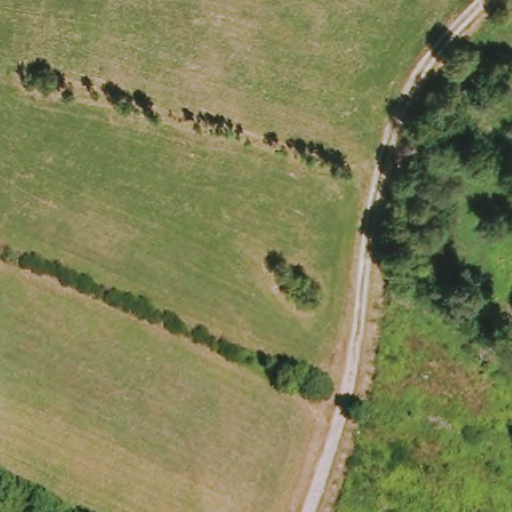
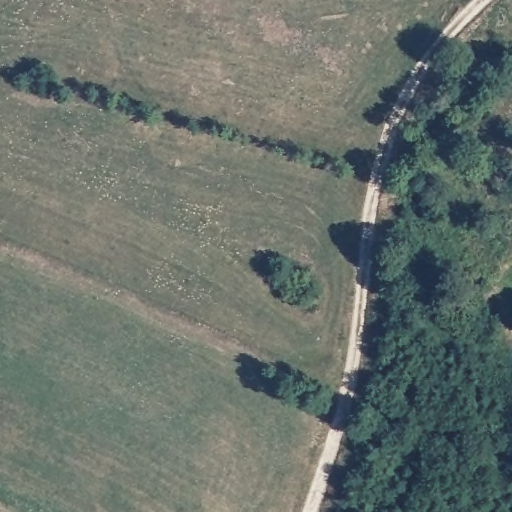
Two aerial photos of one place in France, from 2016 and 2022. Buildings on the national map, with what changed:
[]

